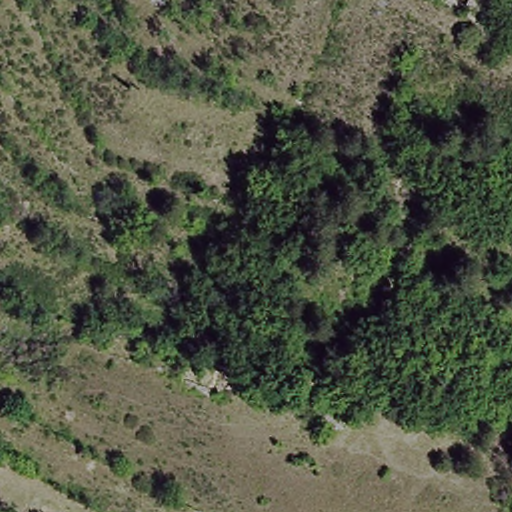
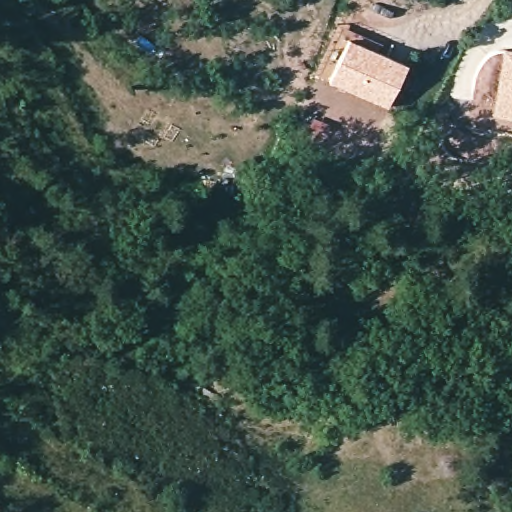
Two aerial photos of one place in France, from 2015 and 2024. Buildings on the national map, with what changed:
new [(406,64),(388,107),(329,81),(348,39),(406,64)]
new [(493,115),(501,48),(512,49),(512,118),(493,115)]

